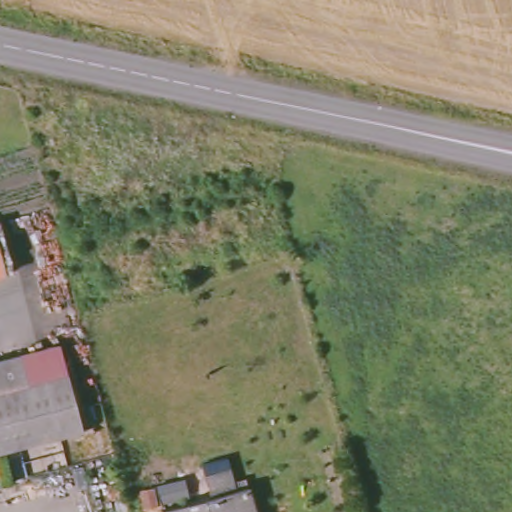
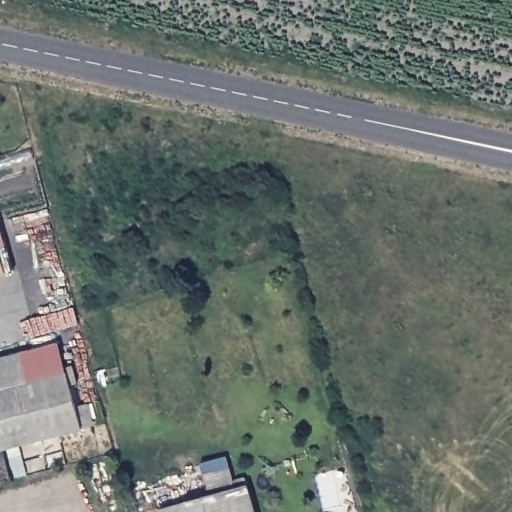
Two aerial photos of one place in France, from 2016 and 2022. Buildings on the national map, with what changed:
unchanged [(7,275),(0,277),(0,251),(7,275)]
unchanged [(21,355),(29,383),(65,374),(81,434),(0,455),(0,361),(21,355)]
unchanged [(254,512),(166,512),(248,489),(254,512)]

